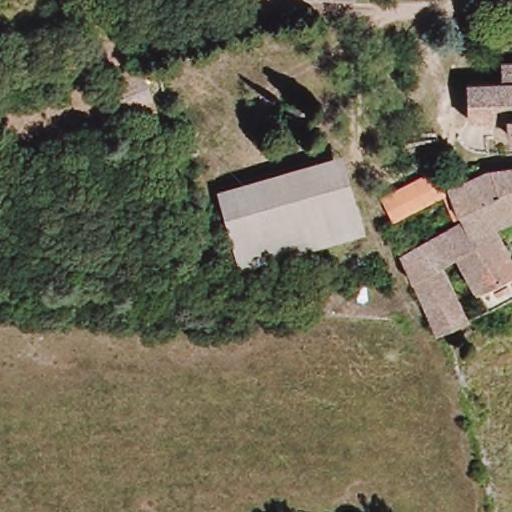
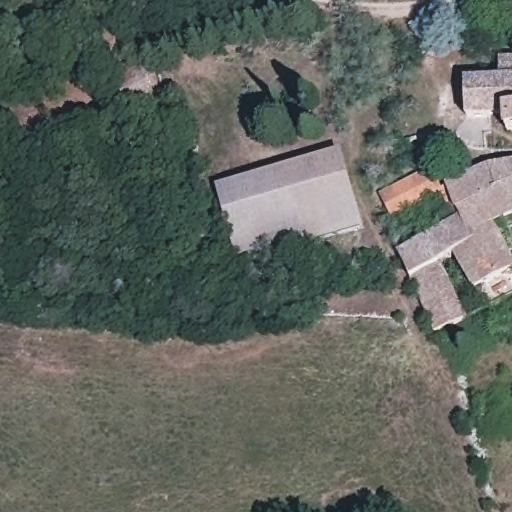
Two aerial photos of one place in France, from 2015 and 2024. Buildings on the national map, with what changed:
unchanged [(512,55),(512,139),(507,140),(509,117),(482,116),(462,116),(474,74),(497,75),(498,54),(512,55)]
unchanged [(102,75),(128,60),(148,100),(121,115),(102,75)]
unchanged [(294,115),(294,96),(309,96),(308,115),(294,115)]
unchanged [(218,184),(343,143),(364,216),(365,221),(283,249),(239,262),(235,246),(218,184)]
unchanged [(472,291),(454,255),(436,263),(459,316),(425,331),(384,216),(389,215),(382,185),(415,174),(433,168),(438,185),(469,175),(512,158),(512,210),(493,215),(512,255),(512,293),(479,307),(472,291)]

